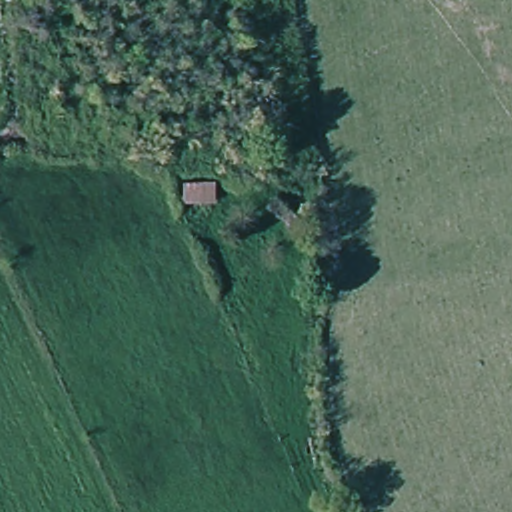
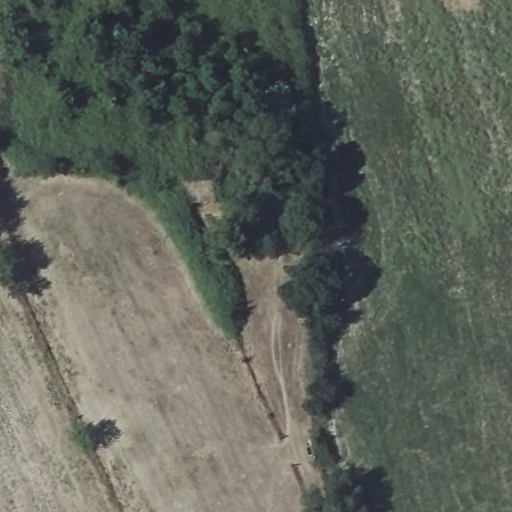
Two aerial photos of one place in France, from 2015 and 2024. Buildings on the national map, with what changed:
unchanged [(221,187),(221,207),(182,207),(184,187),(221,187)]

